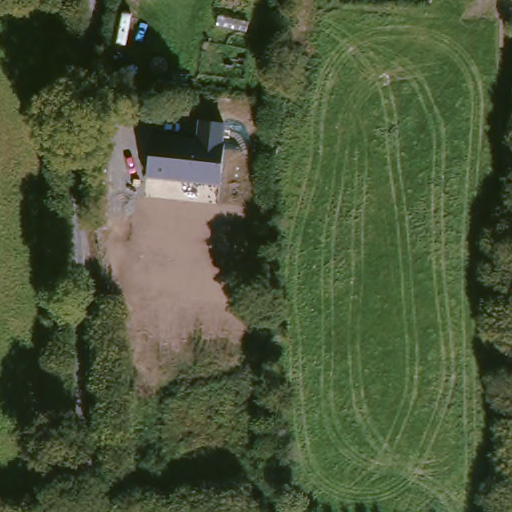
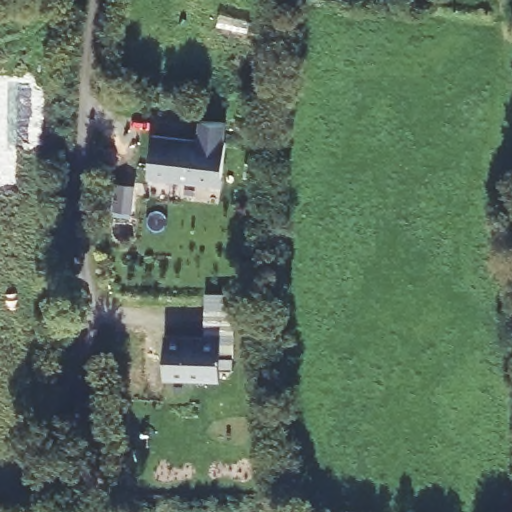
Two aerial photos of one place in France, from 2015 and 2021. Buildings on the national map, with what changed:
unchanged [(225,123),(220,185),(145,176),(151,135),(196,140),(197,120),(225,123)]
new [(165,335),(221,335),(220,356),(232,357),(232,367),(220,367),(219,380),(164,379),(165,335)]

